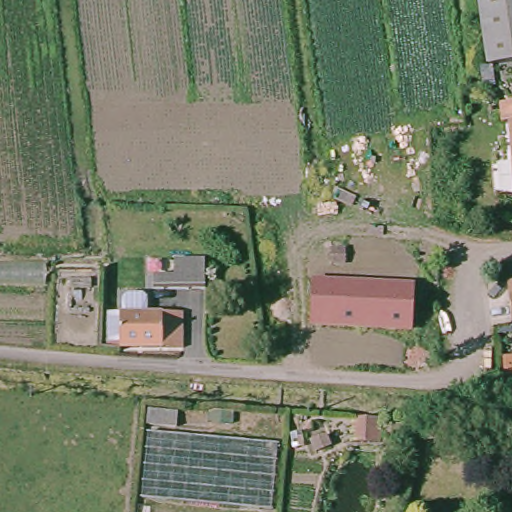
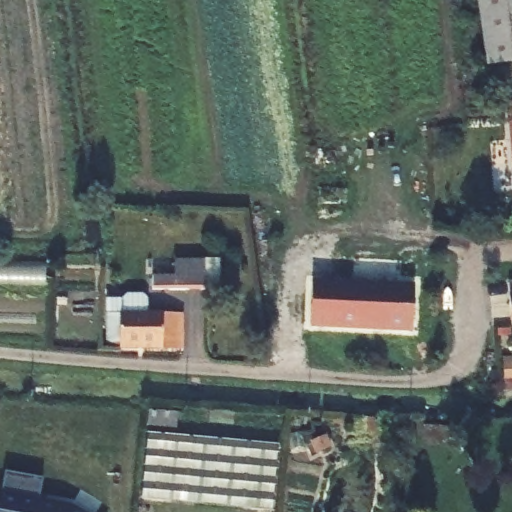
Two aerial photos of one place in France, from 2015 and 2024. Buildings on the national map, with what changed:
unchanged [(492,60),(484,0),(512,0),(512,58),(492,60)]
unchanged [(511,99),(512,99),(512,120),(511,99)]
unchanged [(212,290),(166,292),(165,284),(172,283),(172,278),(212,277),(212,290)]
unchanged [(416,287),(414,336),(308,328),(311,280),(416,287)]
unchanged [(511,323),(510,283),(512,283),(512,323),(511,323)]
unchanged [(182,310),(184,345),(107,347),(107,312),(182,310)]
unchanged [(218,508),(144,498),(151,429),(226,438),(218,508)]
unchanged [(267,512),(250,512),(218,508),(226,438),(270,445),(279,445),(267,512)]
new [(51,479),(46,501),(76,508),(82,512),(4,512),(12,471),(51,479)]

